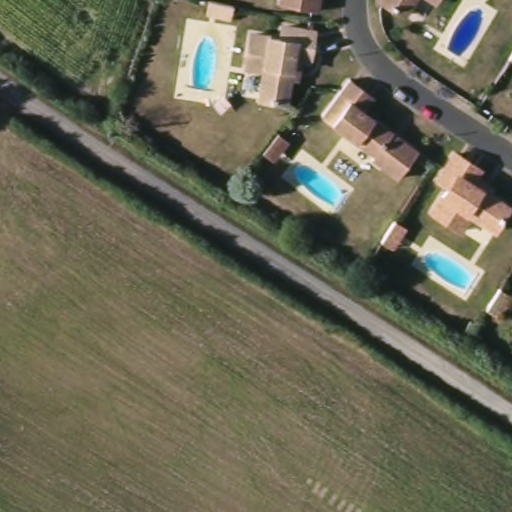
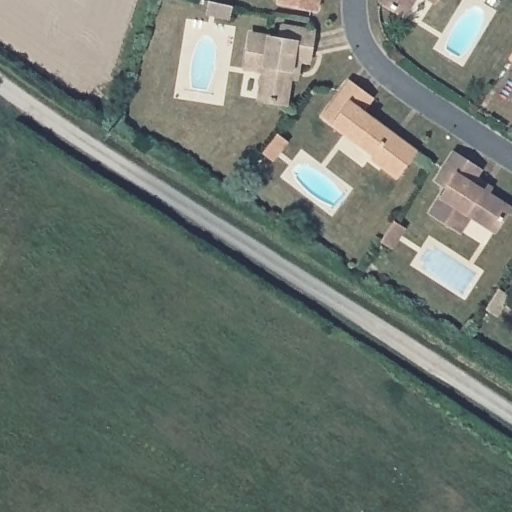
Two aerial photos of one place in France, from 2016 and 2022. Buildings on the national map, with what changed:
unchanged [(195,0),(197,0),(220,5),(217,19),(192,13),(195,0)]
unchanged [(321,0),(320,4),(298,0),(321,0)]
unchanged [(394,0),(413,0),(408,8),(394,0)]
unchanged [(289,97),(263,93),(267,65),(248,62),(253,28),(284,33),(286,20),(310,24),(317,25),(313,55),(303,53),(302,61),(300,68),(293,67),(289,97)]
unchanged [(512,37),(512,64),(512,65),(499,57),(512,37)]
unchanged [(326,110),(345,84),(353,73),(379,92),(369,105),(423,145),(403,172),(378,153),(380,150),(326,110)]
unchanged [(251,152),(266,132),(278,141),(262,161),(251,152)]
unchanged [(476,209),(465,225),(437,206),(454,181),(443,174),(450,163),(461,147),(486,164),(480,172),(487,176),(493,181),(489,187),(512,201),(512,207),(500,225),(476,209)]
unchanged [(372,242),(385,220),(398,228),(384,249),(372,242)]
unchanged [(478,309),(492,288),(504,296),(491,317),(478,309)]

